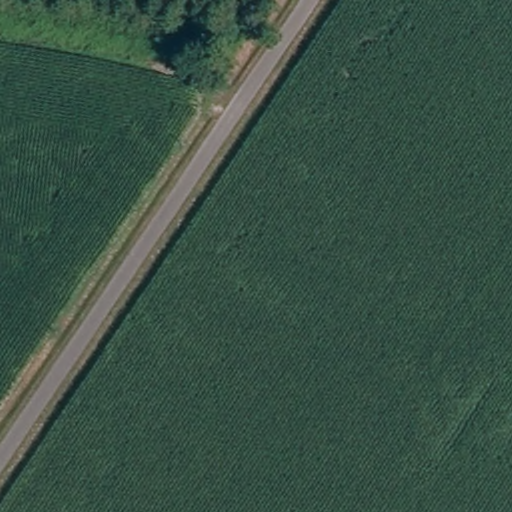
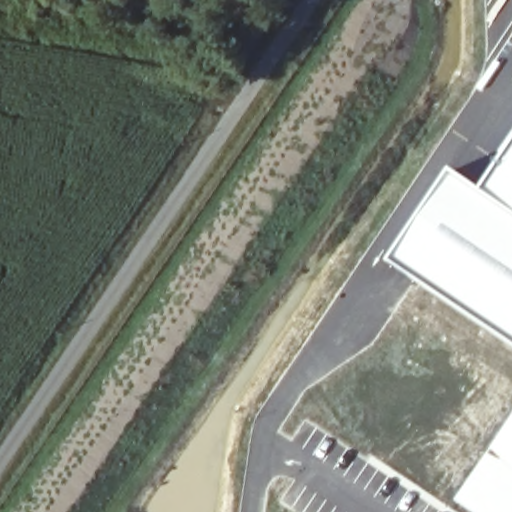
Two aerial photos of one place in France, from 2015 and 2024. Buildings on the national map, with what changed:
new [(481,190),(512,147),(512,342),(438,292),(390,262),(452,170),(481,190)]
new [(512,414),(512,512),(470,512),(453,500),(512,414)]

